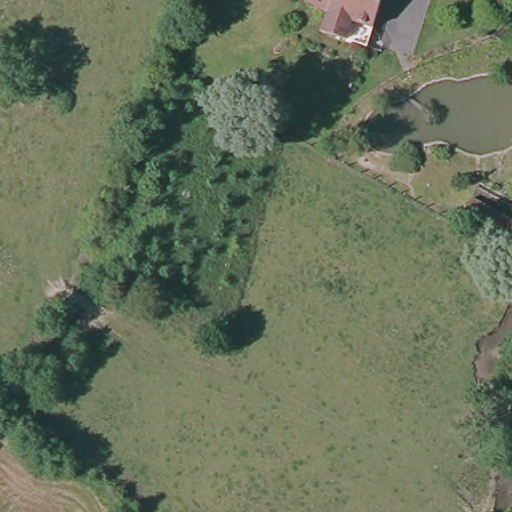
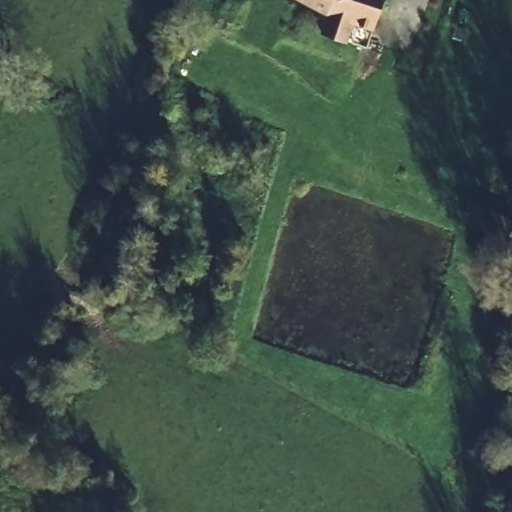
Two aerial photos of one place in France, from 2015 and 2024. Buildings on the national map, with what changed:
unchanged [(355,17),(348,39),(325,31),(329,12),(309,0),(384,0),(377,25),(355,17)]
unchanged [(512,216),(512,231),(510,235),(466,211),(475,195),(512,216)]

